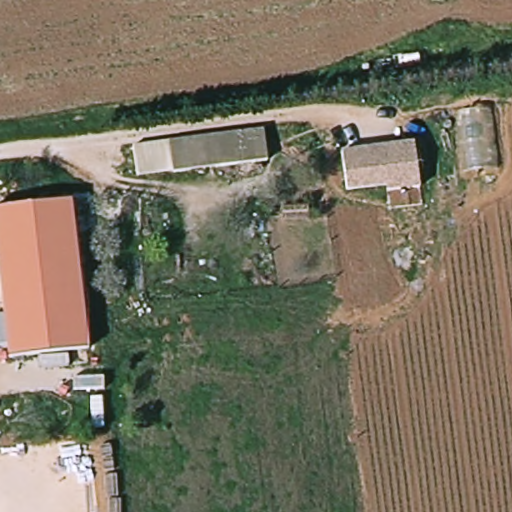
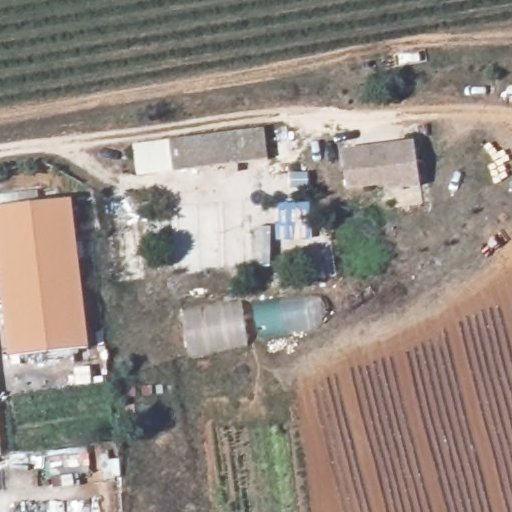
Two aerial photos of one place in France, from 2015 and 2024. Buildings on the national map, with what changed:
unchanged [(241,129),(246,160),(150,173),(146,142),(241,129)]
unchanged [(416,140),(422,184),(390,189),(389,182),(349,187),(344,150),(416,140)]
unchanged [(72,199),(94,348),(15,360),(0,255),(0,210),(72,199)]
new [(2,266),(0,267),(0,253),(2,266)]
new [(179,313),(320,294),(327,330),(185,350),(179,313)]

